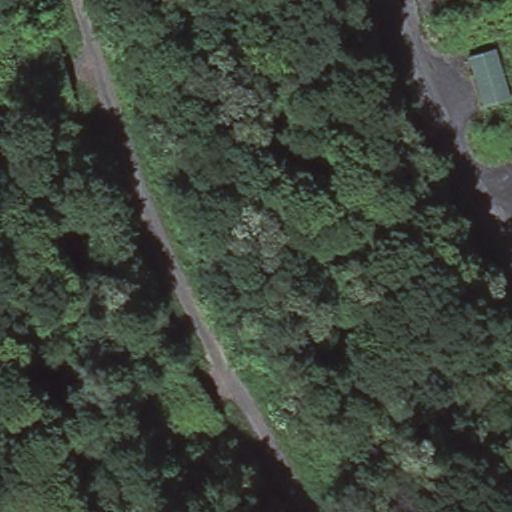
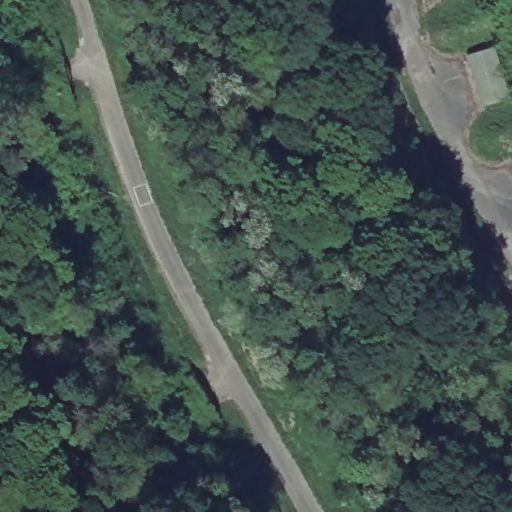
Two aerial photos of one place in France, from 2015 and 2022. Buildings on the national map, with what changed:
unchanged [(512,89),(512,105),(485,113),(464,53),(495,45),(512,89)]
unchanged [(512,157),(512,159),(511,157),(512,157)]

